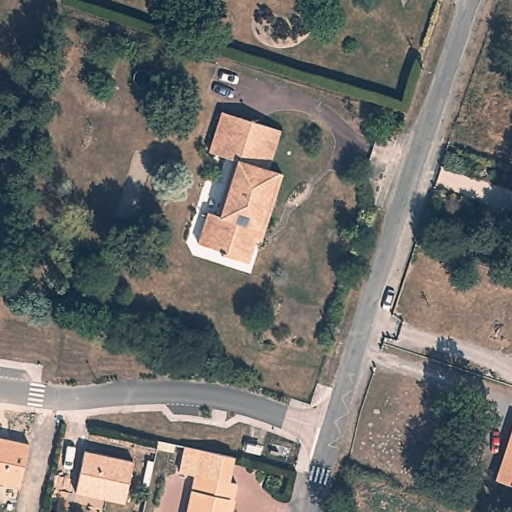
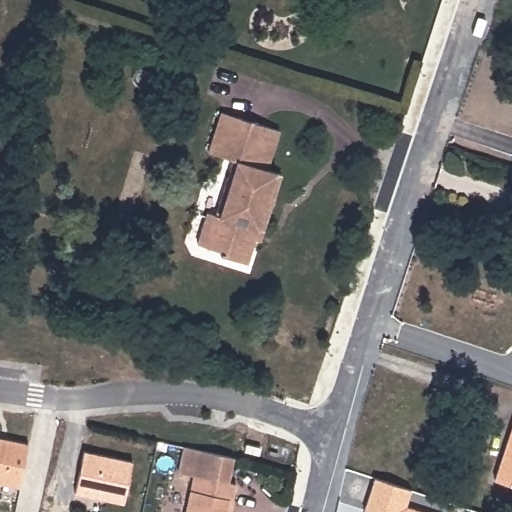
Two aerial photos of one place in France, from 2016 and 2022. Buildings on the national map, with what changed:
unchanged [(253,243),(246,269),(218,260),(219,255),(196,249),(205,220),(213,222),(231,164),(205,155),(218,115),(275,134),(265,173),(280,177),(264,231),(260,244),(253,243)]
unchanged [(494,462),(501,440),(506,442),(512,423),(512,489),(488,481),(494,462)]
unchanged [(67,426),(63,443),(54,441),(58,424),(67,426)]
unchanged [(19,491),(0,485),(0,436),(29,443),(19,491)]
unchanged [(192,451),(241,465),(235,489),(242,491),(237,508),(234,507),(233,512),(192,512),(200,481),(186,477),(192,451)]
unchanged [(133,461),(125,505),(74,494),(82,453),(133,461)]
new [(375,478),(411,490),(407,506),(428,512),(366,512),(364,511),(375,478)]

